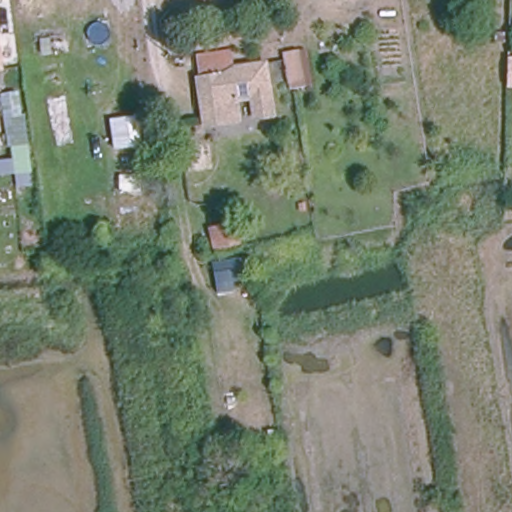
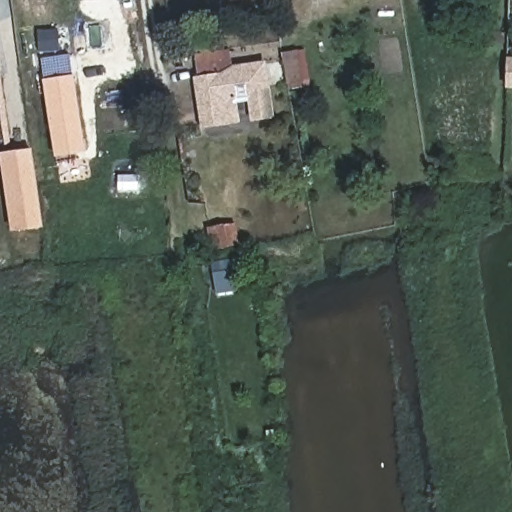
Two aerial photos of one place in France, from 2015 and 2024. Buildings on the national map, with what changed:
unchanged [(296,49),(301,79),(286,81),(285,70),(282,52),(296,49)]
unchanged [(229,128),(212,131),(205,84),(210,83),(207,65),(234,61),(236,79),(240,78),(240,74),(270,69),(278,120),(260,123),(257,104),(241,107),(243,121),(244,126),(229,128)]
unchanged [(510,61),(512,61),(512,87),(509,86),(510,61)]
new [(86,151),(55,157),(42,80),(75,75),(86,151)]
demolished [(20,93),(31,175),(10,179),(0,119),(0,96),(20,93)]
new [(0,153),(32,148),(44,228),(12,232),(0,153)]
unchanged [(215,272),(230,272),(232,291),(216,296),(215,272)]

